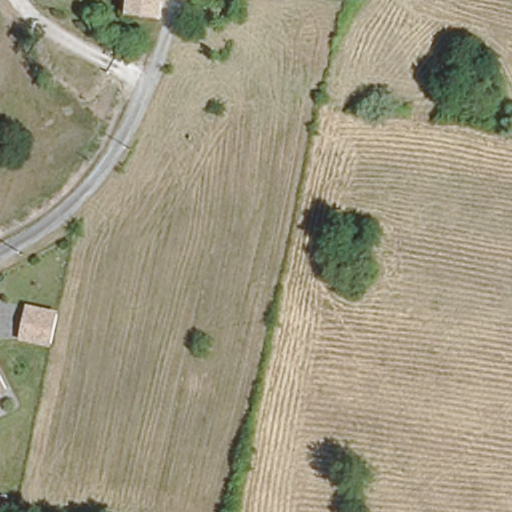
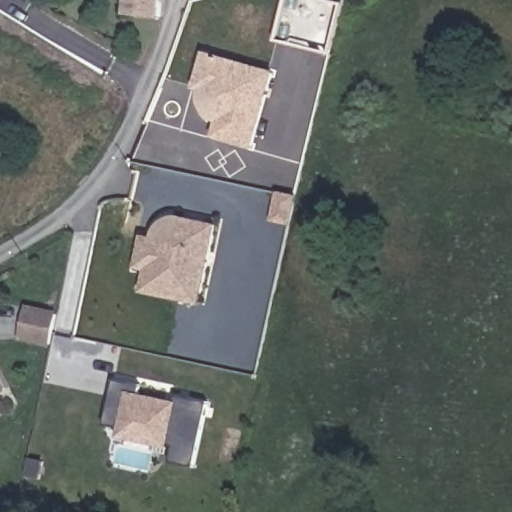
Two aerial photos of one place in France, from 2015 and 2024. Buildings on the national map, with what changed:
unchanged [(126,0),(160,0),(157,19),(124,15),(126,0)]
new [(190,94),(197,57),(267,71),(252,145),(213,137),(216,124),(209,122),(205,120),(202,116),(197,108),(196,99),(196,95),(190,94)]
new [(276,195),(293,199),(289,219),(287,226),(269,222),(271,214),(276,195)]
new [(200,305),(140,292),(145,270),(135,268),(142,234),(152,236),(155,229),(159,223),(164,219),(172,215),(179,215),(217,223),(200,305)]
unchanged [(59,308),(52,348),(16,343),(26,303),(59,308)]
new [(111,380),(138,386),(136,395),(171,402),(173,396),(205,403),(191,468),(167,463),(170,447),(115,435),(117,429),(101,426),(111,380)]
unchanged [(0,399),(0,381),(7,395),(0,399)]

